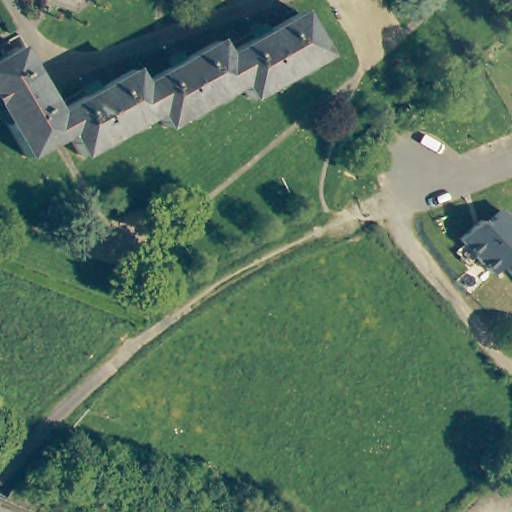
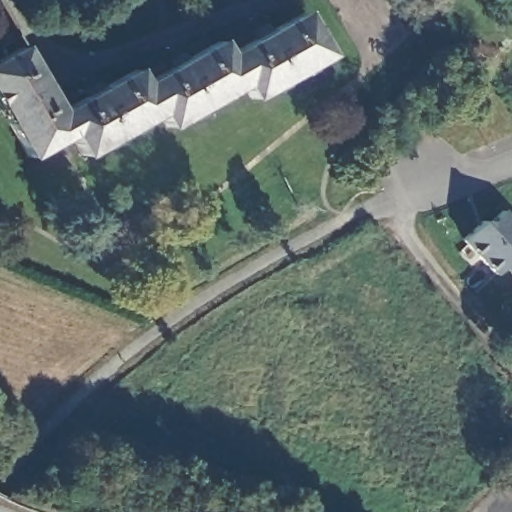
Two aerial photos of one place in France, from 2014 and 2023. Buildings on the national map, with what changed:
unchanged [(145,83),(189,58),(202,50),(212,45),(220,60),(299,16),(322,60),(275,86),(259,95),(244,103),(236,89),(162,130),(154,117),(138,88),(145,83)]
unchanged [(78,158),(66,137),(24,160),(0,116),(0,59),(17,50),(26,67),(55,115),(89,97),(130,74),(138,88),(154,117),(78,158)]
unchanged [(494,274),(461,239),(480,221),(485,225),(500,210),(512,222),(512,256),(504,264),(494,274)]
unchanged [(512,272),(504,264),(512,256),(512,272)]

